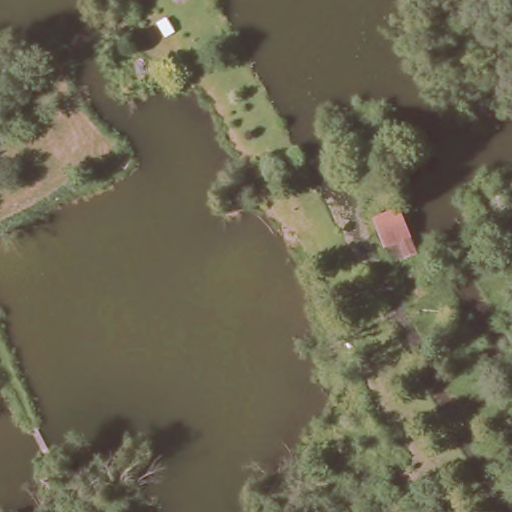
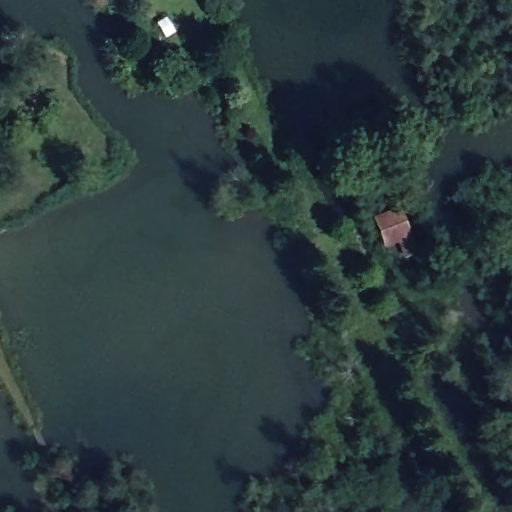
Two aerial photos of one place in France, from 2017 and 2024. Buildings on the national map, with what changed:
unchanged [(383,249),(371,216),(398,205),(407,238),(383,249)]

